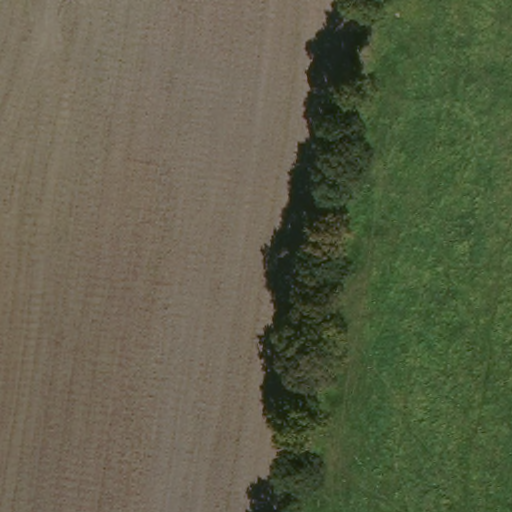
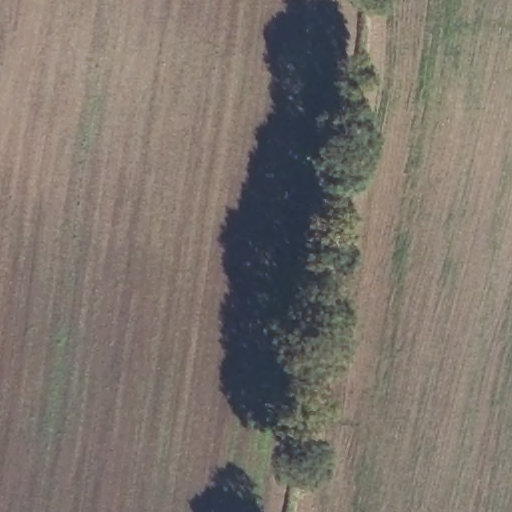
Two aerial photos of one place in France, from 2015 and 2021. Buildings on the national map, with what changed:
[]

